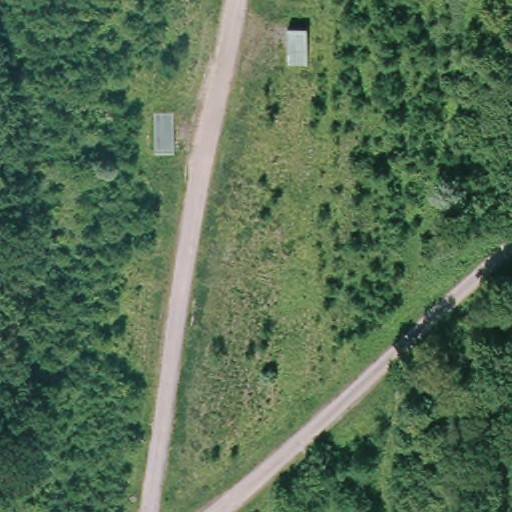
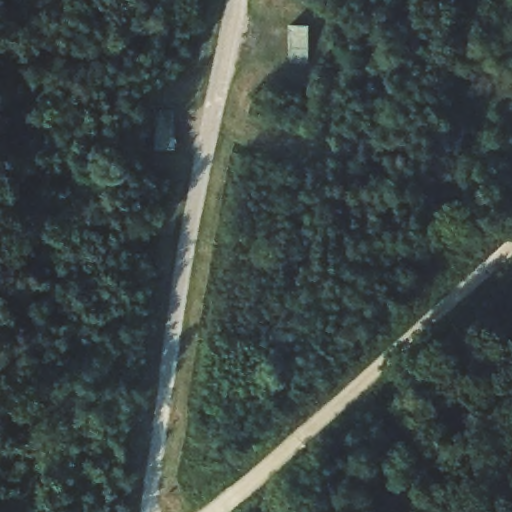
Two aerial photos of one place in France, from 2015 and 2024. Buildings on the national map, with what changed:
unchanged [(289,61),(285,22),(309,23),(309,64),(289,61)]
unchanged [(151,146),(152,106),(174,107),(173,146),(151,146)]

